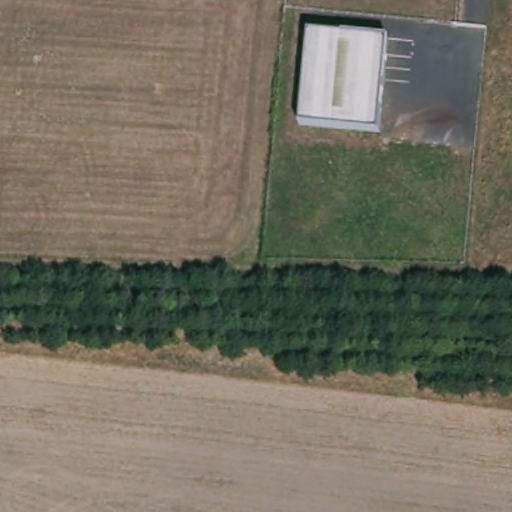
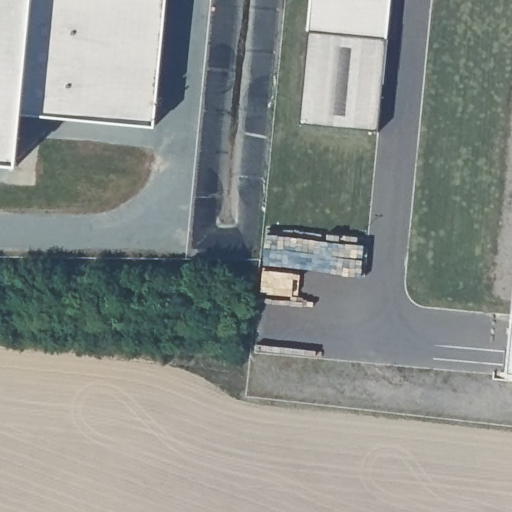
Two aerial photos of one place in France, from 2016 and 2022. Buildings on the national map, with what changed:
new [(157,124),(24,112),(20,163),(0,161),(0,0),(167,0),(157,124)]
new [(311,0),(391,0),(388,36),(309,29),(311,0)]
unchanged [(388,36),(379,130),(299,122),(309,29),(388,36)]
new [(512,375),(507,375),(512,317),(512,375)]

